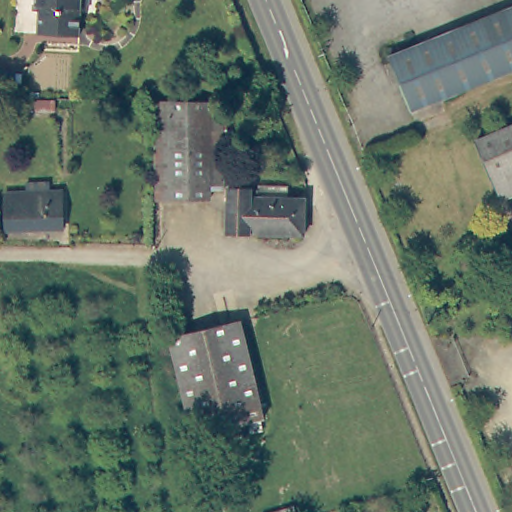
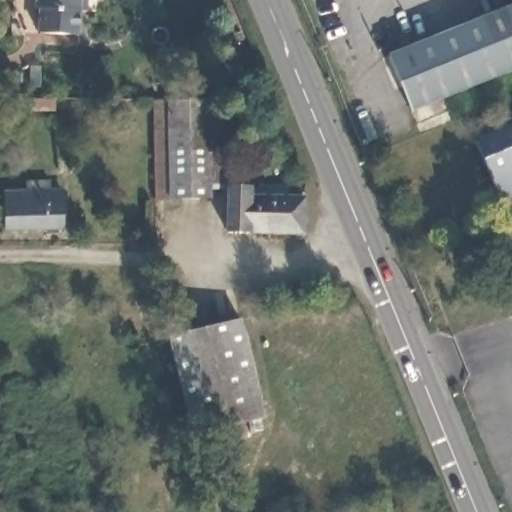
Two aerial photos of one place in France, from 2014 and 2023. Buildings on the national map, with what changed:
unchanged [(40,34),(41,6),(35,6),(36,0),(82,0),(80,35),(40,34)]
unchanged [(443,34),(512,6),(512,72),(452,99),(417,114),(412,101),(392,56),(443,34)]
unchanged [(221,99),(221,185),(211,186),(210,199),(155,198),(154,99),(221,99)]
unchanged [(477,139),(512,125),(512,192),(500,197),(477,139)]
unchanged [(68,231),(1,233),(0,197),(32,194),(31,183),(55,181),(55,193),(67,193),(68,231)]
unchanged [(305,185),(302,237),(230,232),(232,185),(272,188),(273,183),(305,185)]
unchanged [(261,418),(190,431),(169,334),(243,319),(261,418)]

